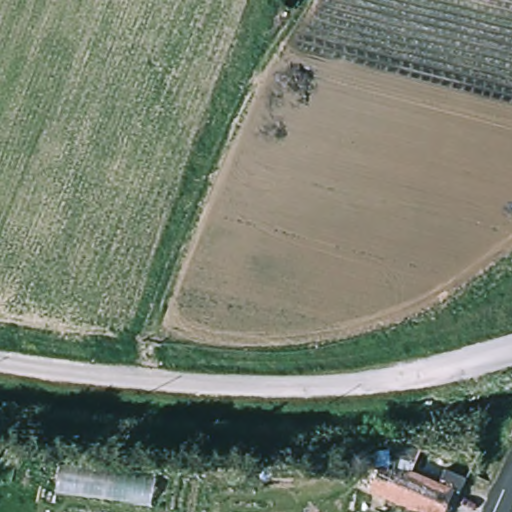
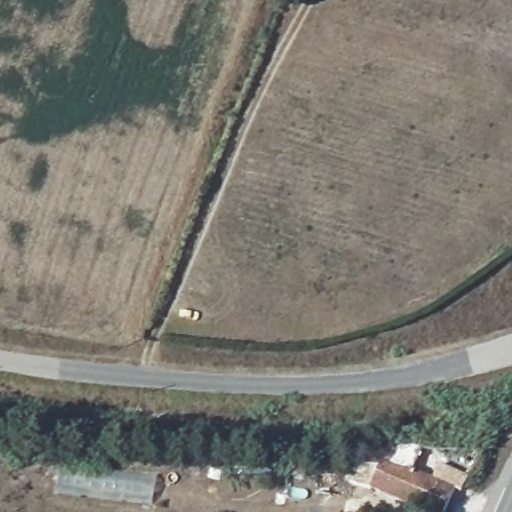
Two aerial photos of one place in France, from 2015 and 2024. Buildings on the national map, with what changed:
unchanged [(420,471),(445,482),(452,468),(476,479),(468,496),(460,492),(452,512),(424,512),(375,490),(385,467),(369,468),(369,452),(429,450),(420,471)]

